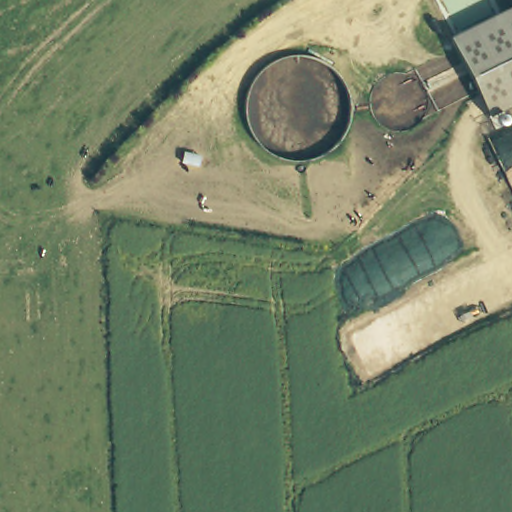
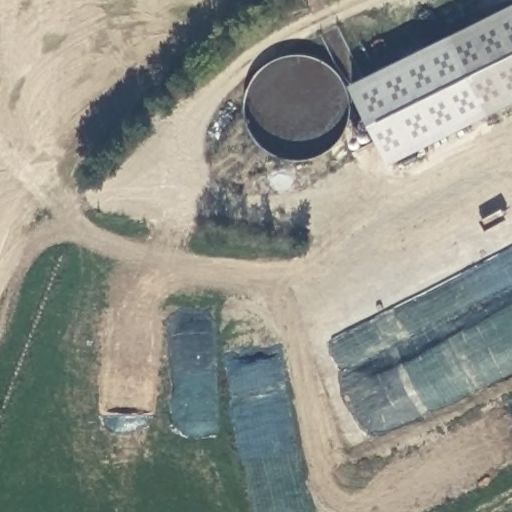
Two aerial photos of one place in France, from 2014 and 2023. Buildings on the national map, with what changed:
unchanged [(512,6),(512,102),(488,114),(449,39),(512,6)]
new [(389,165),(349,85),(449,39),(488,114),(389,165)]

